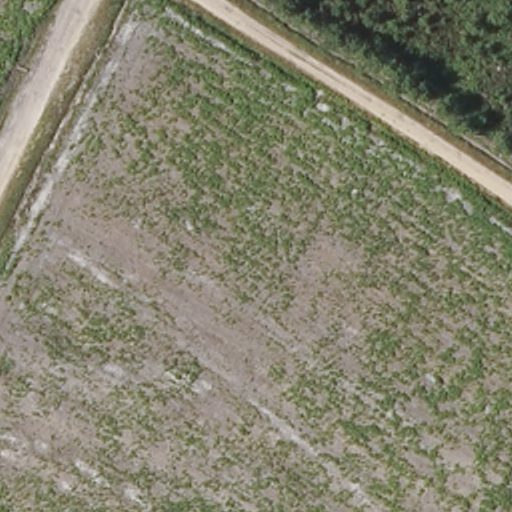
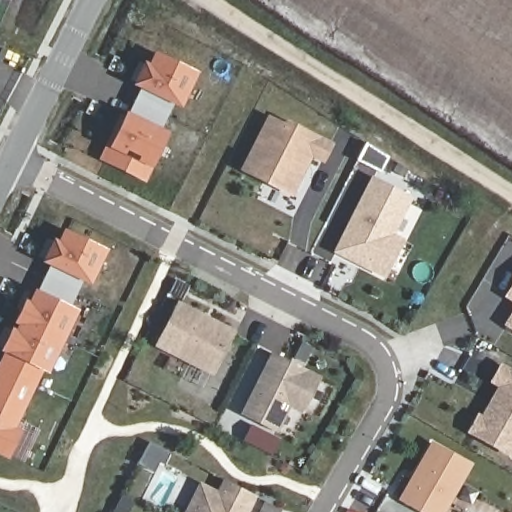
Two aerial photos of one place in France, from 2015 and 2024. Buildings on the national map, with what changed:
new [(137,84),(132,82),(141,65),(145,67),(151,54),(189,72),(175,101),(170,99),(155,131),(160,133),(139,177),(102,158),(122,115),(137,84)]
new [(325,163),(313,158),(292,197),(239,171),(267,114),(283,122),(286,118),(335,143),(325,163)]
new [(394,234),(405,239),(386,278),(333,253),(371,175),(413,196),(394,234)]
new [(17,343),(24,328),(28,330),(33,320),(29,318),(36,304),(40,306),(45,295),(59,268),(55,266),(62,251),(66,252),(71,241),(104,257),(92,283),(87,281),(74,308),(78,310),(54,360),(50,358),(37,386),(41,387),(33,403),(30,402),(24,414),(27,415),(18,434),(0,426),(0,387),(8,371),(21,345),(17,343)]
new [(512,283),(512,302),(504,296),(512,283)]
new [(154,345),(178,300),(236,330),(213,375),(154,345)]
new [(512,313),(512,330),(504,324),(512,313)]
new [(303,413),(290,406),(277,432),(240,413),(270,351),(321,376),(303,413)]
new [(477,413),(481,414),(496,386),(489,381),(500,362),(512,369),(512,457),(467,432),(477,413)]
new [(445,512),(419,512),(397,499),(432,440),(472,464),(445,512)]
new [(249,512),(184,512),(199,482),(217,490),(223,479),(257,496),(249,512)]

